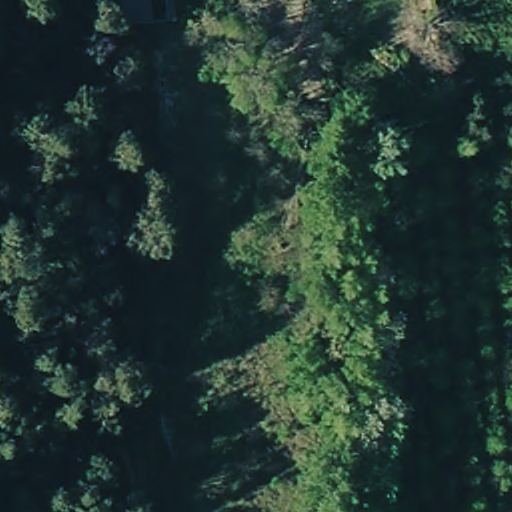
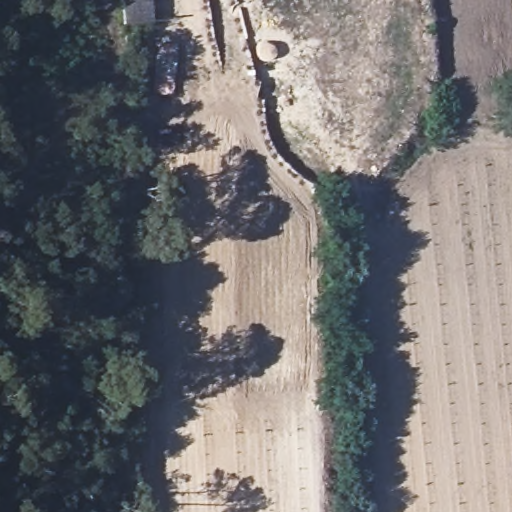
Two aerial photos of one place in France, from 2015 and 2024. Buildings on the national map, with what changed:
unchanged [(176,0),(177,28),(125,31),(122,0),(176,0)]

